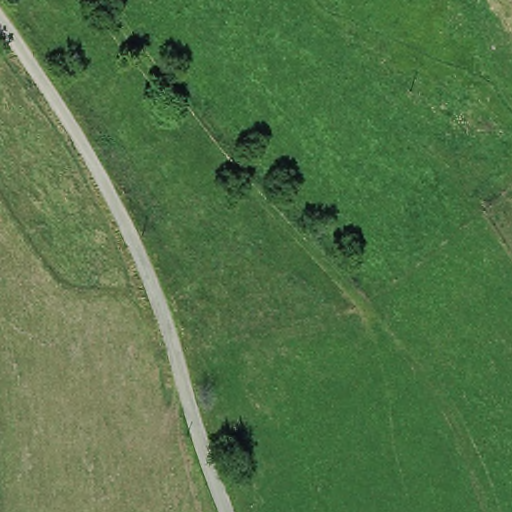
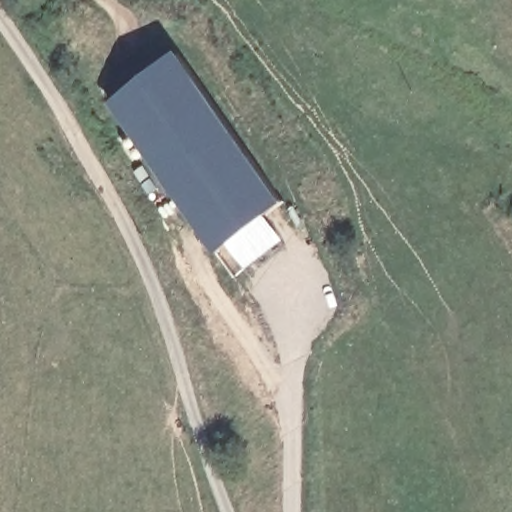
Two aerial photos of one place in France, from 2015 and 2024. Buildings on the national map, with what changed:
new [(301,209),(225,257),(113,106),(192,57),(301,209)]

